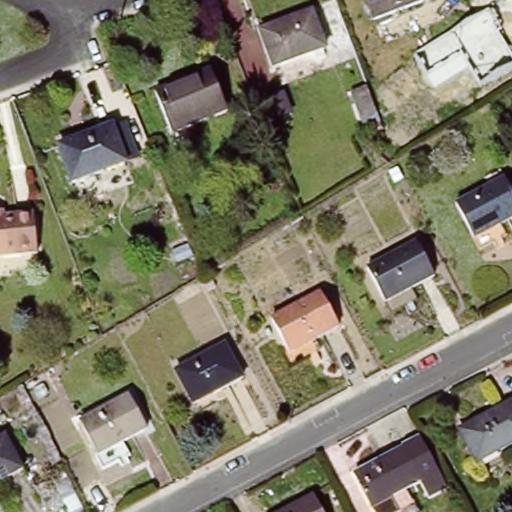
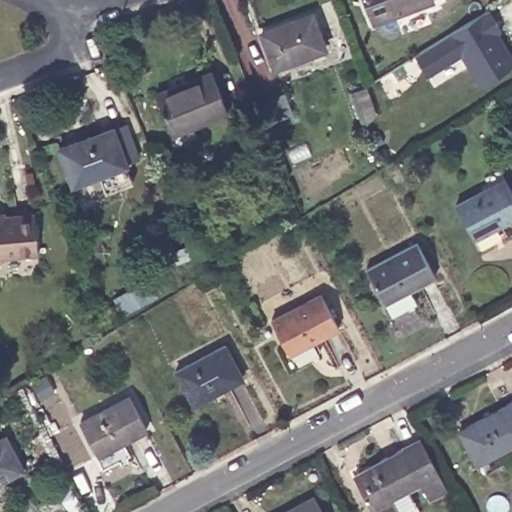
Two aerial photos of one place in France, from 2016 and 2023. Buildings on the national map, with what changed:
unchanged [(371,19),(364,0),(421,0),(371,19)]
new [(512,44),(512,59),(481,79),(464,50),(417,79),(407,62),(492,10),(512,44)]
unchanged [(316,59),(314,51),(276,66),(264,30),(313,11),(326,46),(324,47),(326,55),(316,59)]
unchanged [(228,110),(172,132),(157,92),(213,70),(228,110)]
unchanged [(351,91),(367,86),(377,114),(365,127),(351,91)]
unchanged [(126,162),(74,183),(61,146),(113,127),(126,162)]
unchanged [(512,218),(476,237),(458,203),(506,177),(512,188),(512,218)]
unchanged [(39,251),(0,256),(0,211),(4,210),(4,216),(34,215),(39,251)]
unchanged [(436,275),(386,301),(369,268),(418,242),(436,275)]
unchanged [(334,321),(317,330),(323,341),(286,361),(281,350),(285,347),(268,315),(318,288),(334,321)]
unchanged [(243,376),(195,403),(177,371),(226,344),(243,376)]
unchanged [(58,394),(46,400),(41,390),(53,383),(58,394)]
unchanged [(146,428),(98,455),(80,422),(131,395),(146,428)]
unchanged [(512,401),(512,443),(474,463),(459,435),(457,430),(461,427),(512,401)]
unchanged [(18,464),(0,474),(0,431),(0,430),(18,464)]
unchanged [(360,468),(422,435),(448,483),(431,493),(423,477),(373,504),(358,476),(354,471),(360,468)]
unchanged [(284,512),(315,496),(324,512),(284,512)]

